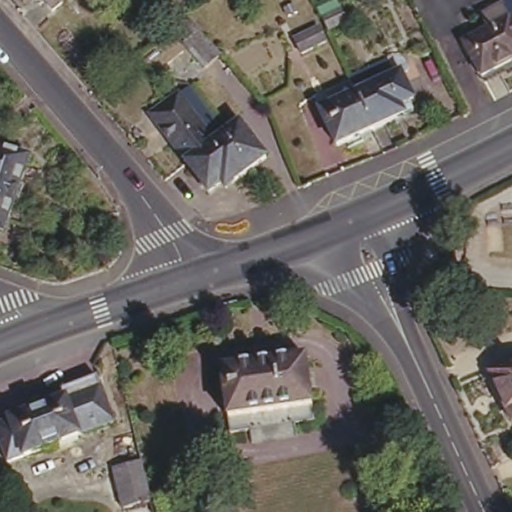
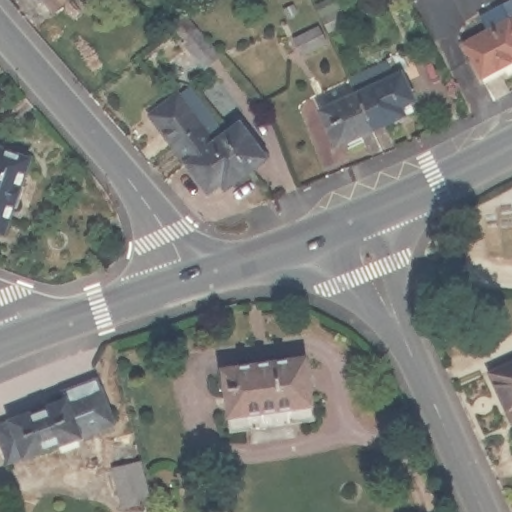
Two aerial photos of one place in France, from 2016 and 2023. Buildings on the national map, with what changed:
unchanged [(53,15),(40,0),(70,0),(53,15)]
unchanged [(456,30),(511,0),(512,0),(512,59),(482,78),(456,30)]
unchanged [(178,40),(180,39),(169,26),(181,15),(218,56),(203,69),(178,40)]
unchanged [(303,50),(296,35),(322,22),(330,38),(303,50)]
unchanged [(400,118),(371,132),(355,97),(348,82),(386,65),(392,79),(400,76),(413,104),(397,111),(400,118)]
unchanged [(178,90),(212,133),(240,115),(271,160),(207,198),(146,108),(178,90)]
unchanged [(334,149),(319,114),(355,97),(371,132),(334,149)]
unchanged [(0,226),(0,146),(30,156),(5,228),(0,226)]
unchanged [(486,367),(512,354),(512,410),(508,412),(486,367)]
unchanged [(227,415),(223,388),(220,368),(302,356),(304,370),(307,389),(309,403),(227,415)]
unchanged [(117,431),(8,466),(0,441),(0,420),(104,384),(117,431)]
unchanged [(146,512),(125,512),(118,477),(144,471),(153,511),(146,512)]

